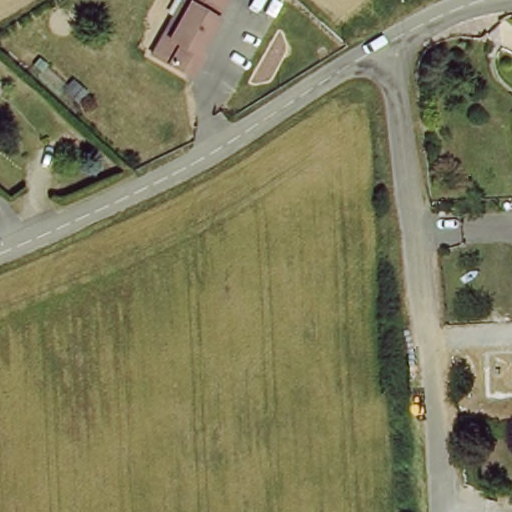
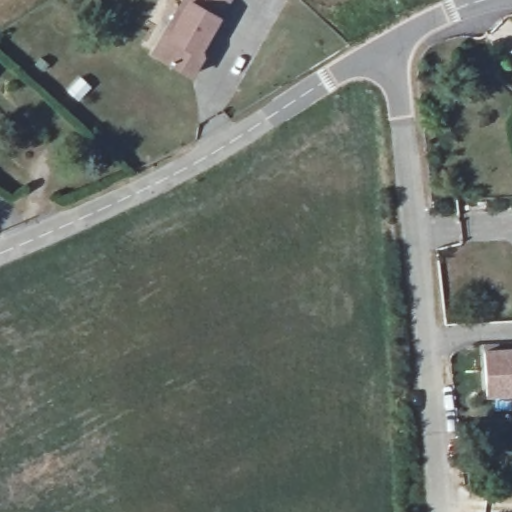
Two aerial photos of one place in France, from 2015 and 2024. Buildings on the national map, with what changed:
unchanged [(191,51),(196,54),(184,71),(146,49),(159,30),(179,0),(224,0),(191,51)]
new [(512,350),(512,398),(487,399),(483,351),(512,350)]

